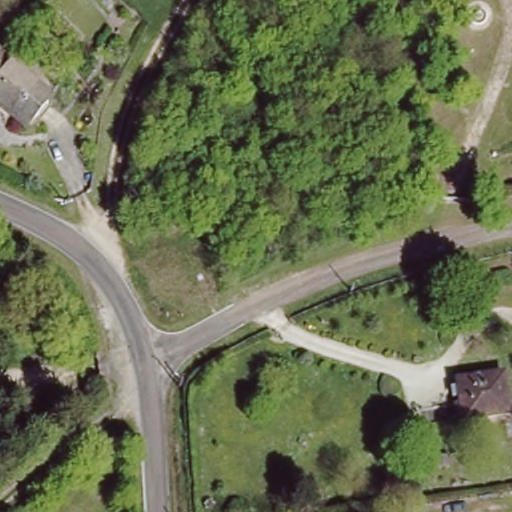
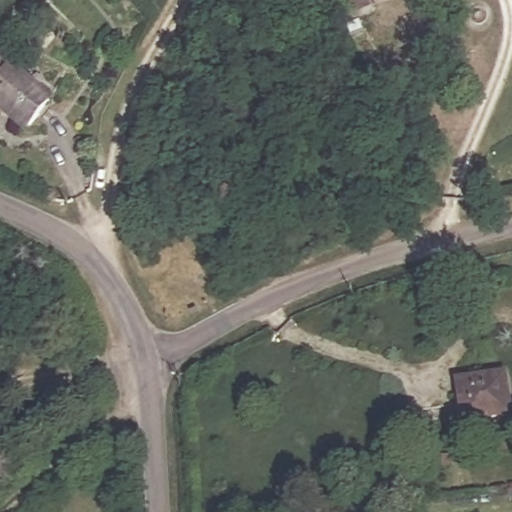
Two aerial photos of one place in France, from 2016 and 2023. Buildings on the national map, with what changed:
unchanged [(335,16),(328,0),(346,0),(350,11),(335,16)]
unchanged [(35,127),(0,106),(0,55),(57,90),(35,127)]
unchanged [(512,410),(512,413),(453,421),(447,386),(456,384),(455,377),(505,369),(512,410)]

